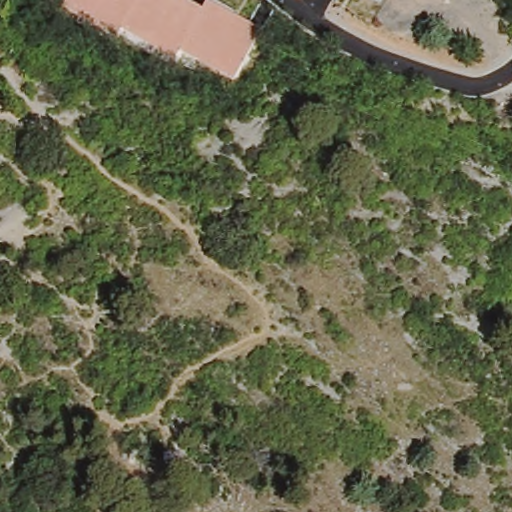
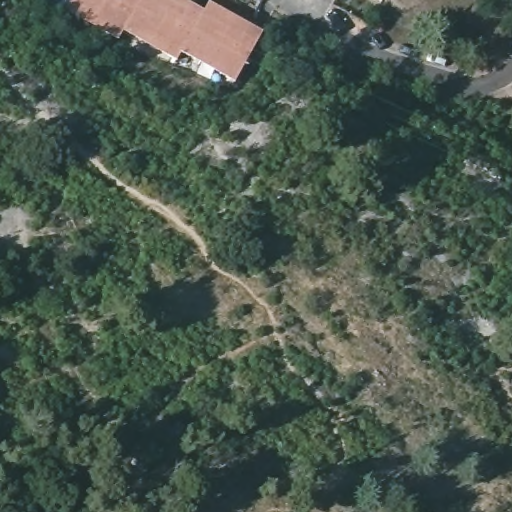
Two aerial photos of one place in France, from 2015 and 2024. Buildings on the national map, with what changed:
unchanged [(216,73),(218,70),(192,56),(190,59),(177,51),(172,60),(158,52),(159,49),(134,35),(132,38),(119,30),(114,39),(100,31),(102,28),(76,13),(74,16),(60,9),(65,0),(182,0),(186,2),(200,10),(205,1),(219,9),(244,23),(258,31),(230,81),(216,73)]
unchanged [(434,10),(436,6),(425,0),(458,0),(448,18),(434,10)]

